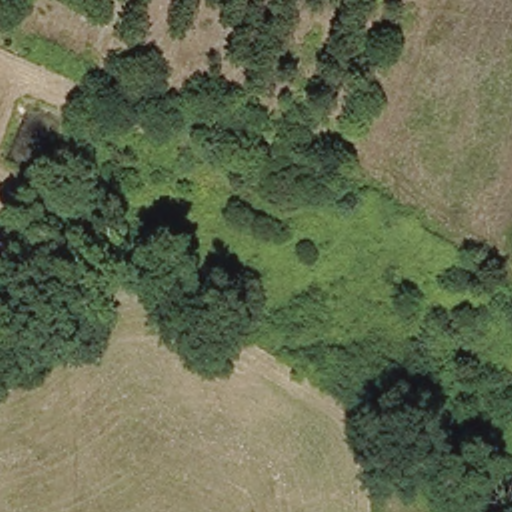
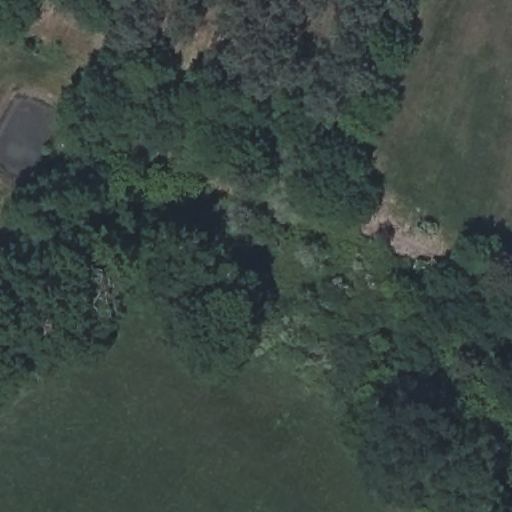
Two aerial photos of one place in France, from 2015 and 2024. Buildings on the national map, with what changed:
[]

